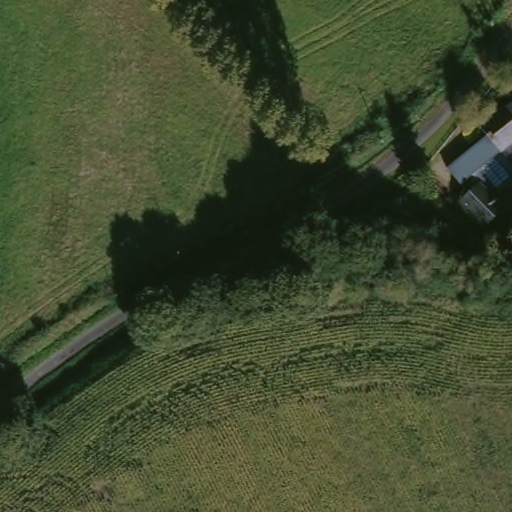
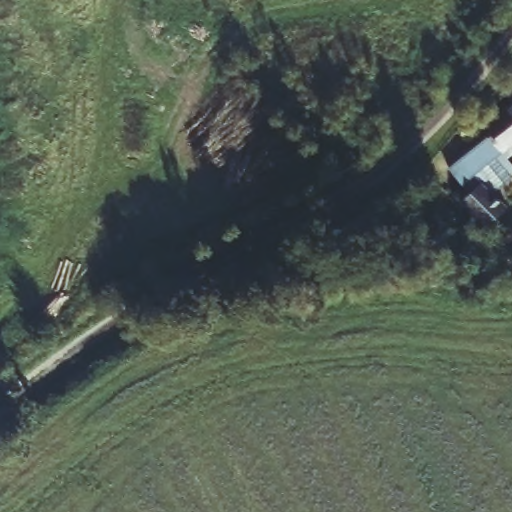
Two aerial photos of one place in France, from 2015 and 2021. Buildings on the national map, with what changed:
unchanged [(509,101),(512,99),(512,104),(509,101)]
unchanged [(507,160),(512,167),(512,179),(491,196),(505,210),(487,228),(483,223),(464,204),(469,200),(449,174),(487,142),(479,132),(512,106),(512,156),(507,160)]

